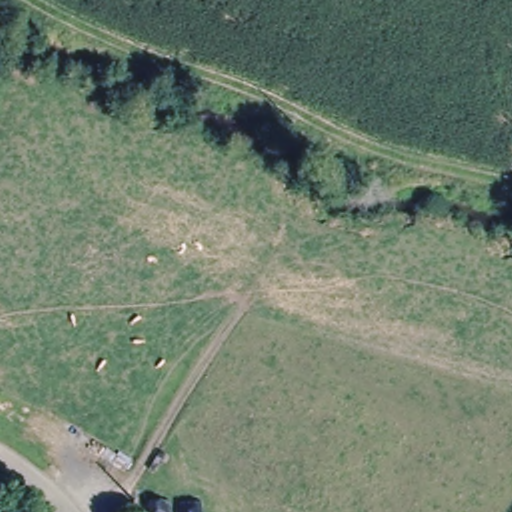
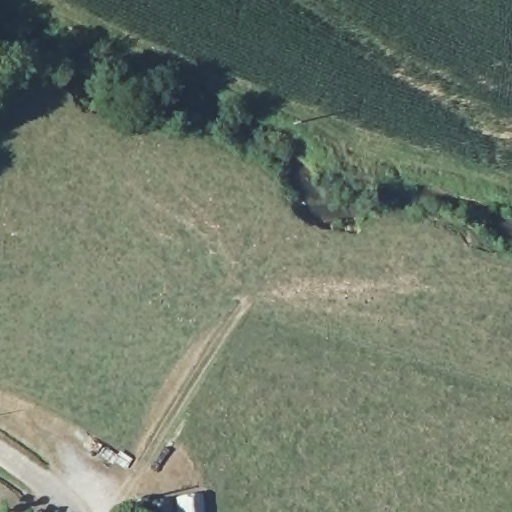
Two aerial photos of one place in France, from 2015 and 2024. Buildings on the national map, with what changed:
[]

